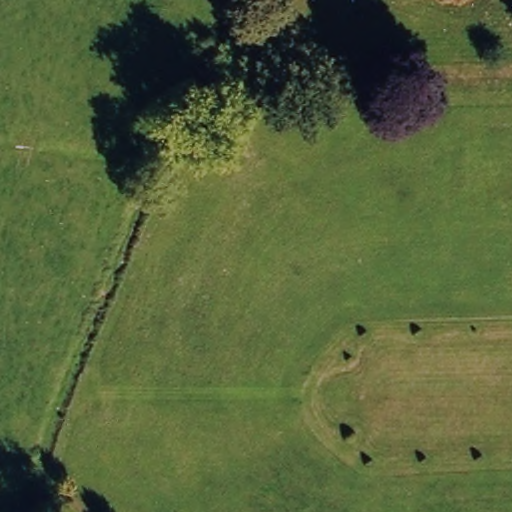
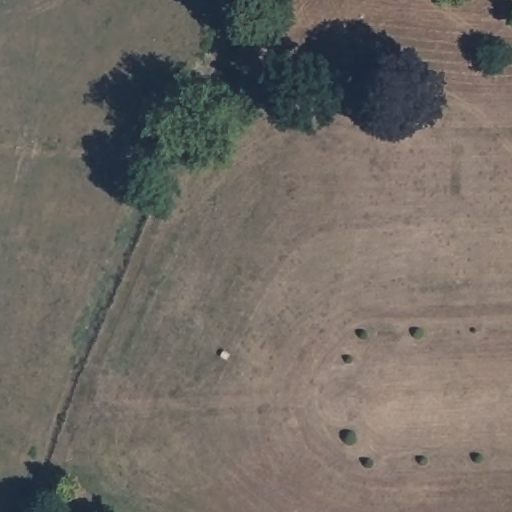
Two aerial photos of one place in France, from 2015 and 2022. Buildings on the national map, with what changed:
[]

